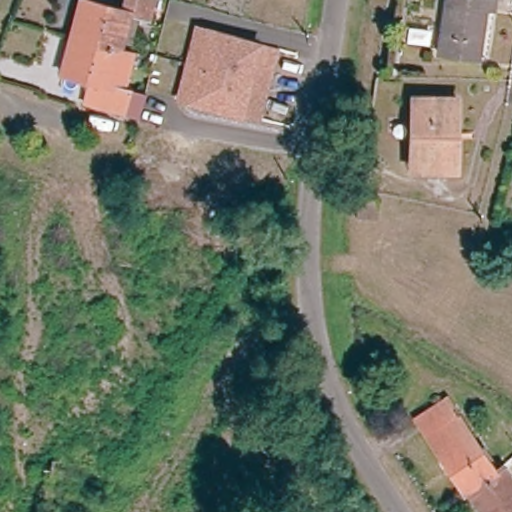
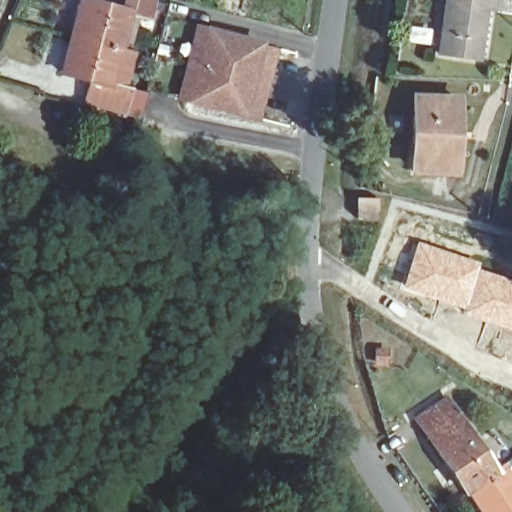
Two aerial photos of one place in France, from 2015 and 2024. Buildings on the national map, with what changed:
unchanged [(79,0),(85,0),(120,8),(99,83),(61,71),(79,0)]
unchanged [(145,15),(120,8),(122,0),(150,0),(145,15)]
unchanged [(446,3),(466,6),(467,0),(498,0),(496,11),(485,10),(476,59),(437,52),(446,3)]
unchanged [(245,120),(194,106),(184,103),(203,34),(213,37),(264,51),(245,120)]
unchanged [(264,51),(282,56),(263,125),(245,120),(264,51)]
unchanged [(119,109),(95,102),(99,83),(125,90),(119,109)]
unchanged [(415,102),(455,101),(455,165),(416,167),(415,102)]
unchanged [(354,199),(359,199),(376,201),(376,218),(354,218),(354,199)]
new [(416,240),(480,262),(478,267),(461,312),(446,303),(400,287),(416,240)]
new [(478,267),(512,279),(512,331),(461,312),(478,267)]
unchanged [(423,430),(434,423),(453,413),(490,468),(465,485),(460,488),(423,430)]
unchanged [(494,466),(512,493),(512,509),(508,512),(483,512),(465,485),(490,468),(494,466)]

